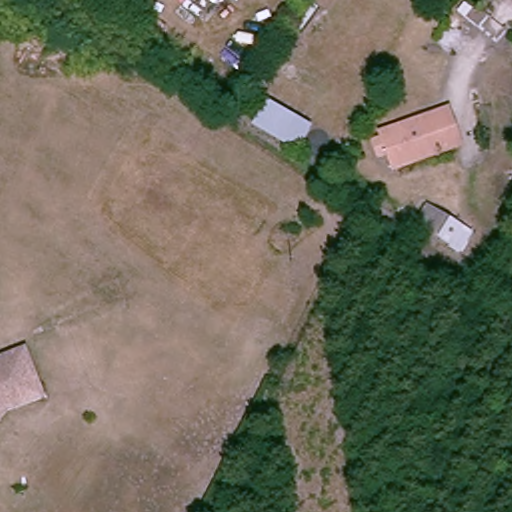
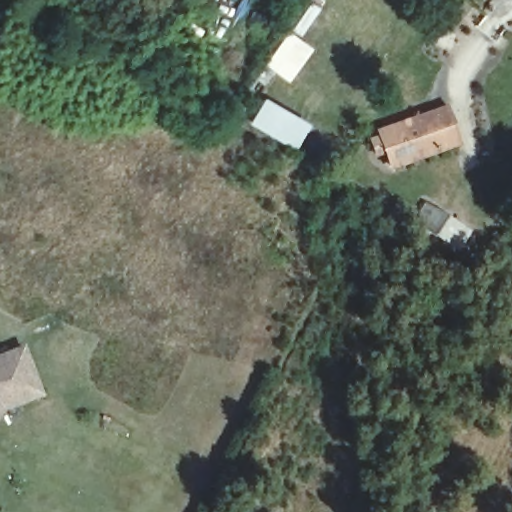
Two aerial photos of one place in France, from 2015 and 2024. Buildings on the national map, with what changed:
unchanged [(59,69),(20,53),(31,30),(69,47),(59,69)]
unchanged [(320,118),(303,147),(252,116),(267,91),(320,118)]
unchanged [(402,127),(401,124),(435,110),(447,106),(458,139),(446,144),(411,158),(408,152),(395,158),(391,147),(386,134),(402,127)]
unchanged [(445,233),(425,219),(435,201),(457,214),(445,233)]
unchanged [(9,355),(19,391),(21,400),(0,406),(0,358),(9,355)]

